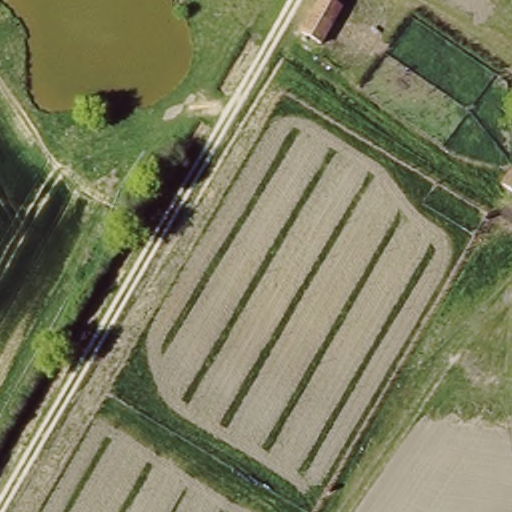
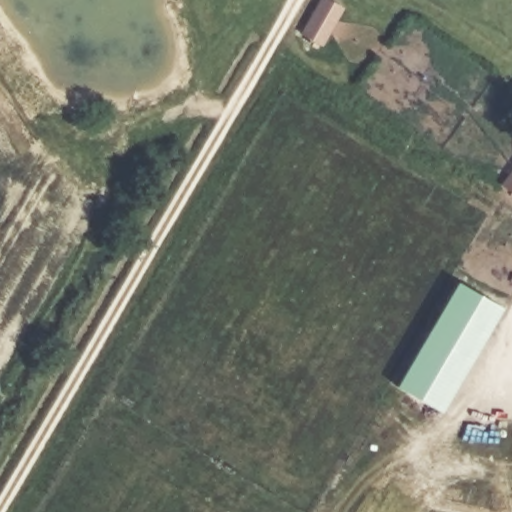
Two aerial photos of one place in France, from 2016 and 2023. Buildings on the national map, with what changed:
unchanged [(324,2),(345,17),(328,52),(303,40),(324,2)]
unchanged [(512,173),(512,190),(503,183),(512,173)]
new [(441,412),(395,384),(456,280),(502,307),(441,412)]

